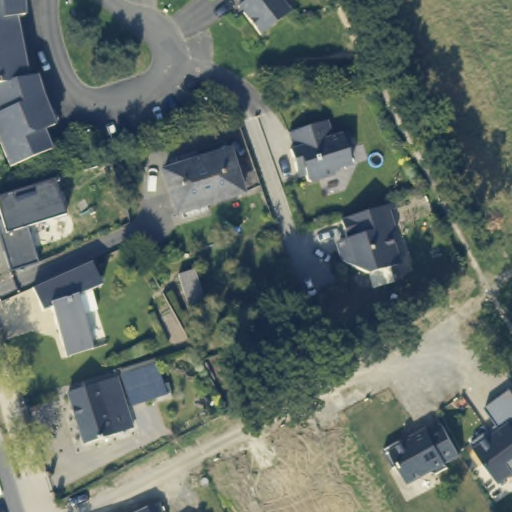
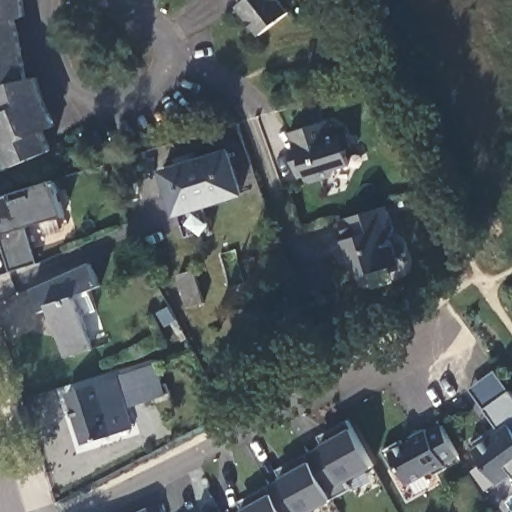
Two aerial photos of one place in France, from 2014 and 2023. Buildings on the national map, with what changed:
unchanged [(22,15),(14,17),(25,78),(34,77),(40,95),(52,127),(42,131),(48,151),(9,167),(0,147),(0,0),(21,0),(22,15)]
unchanged [(289,12),(270,27),(261,34),(239,6),(241,4),(242,3),(240,0),(279,0),(289,12)]
unchanged [(327,121),(332,136),(346,132),(350,146),(345,148),(350,163),(339,167),(332,174),(311,180),(306,178),(303,168),(297,170),(290,149),(292,147),(288,133),(327,121)]
unchanged [(180,218),(177,210),(174,211),(160,165),(175,160),(173,154),(194,148),(197,157),(227,149),(239,192),(202,203),(204,211),(180,218)]
unchanged [(66,215),(27,227),(39,263),(11,272),(0,238),(0,220),(2,219),(0,215),(0,196),(55,179),(66,215)]
unchanged [(338,241),(346,239),(340,220),(392,203),(398,219),(392,221),(395,228),(388,238),(397,265),(366,273),(340,263),(337,250),(334,242),(338,241)]
unchanged [(88,289),(95,308),(82,313),(76,295),(92,347),(66,355),(50,307),(42,310),(32,288),(90,262),(100,283),(88,289)]
unchanged [(192,275),(202,307),(187,311),(177,279),(192,275)]
unchanged [(156,365),(164,396),(130,406),(121,376),(156,365)]
unchanged [(115,378),(131,428),(82,441),(67,392),(115,378)]
unchanged [(506,479),(499,484),(471,444),(488,431),(492,437),(500,431),(484,409),(511,390),(512,392),(512,478),(506,479)]
new [(320,437),(327,433),(350,421),(376,467),(349,482),(353,490),(335,501),(308,454),(325,446),(320,437)]
unchanged [(388,454),(442,426),(459,457),(407,485),(388,454)]
new [(286,467),(308,454),(335,501),(314,512),(285,512),(271,486),(283,479),(279,471),(286,467)]
new [(247,499),(271,486),(285,512),(243,512),(245,511),(241,503),(247,499)]
unchanged [(157,506),(164,505),(166,504),(168,512),(146,512),(155,507),(157,506)]

